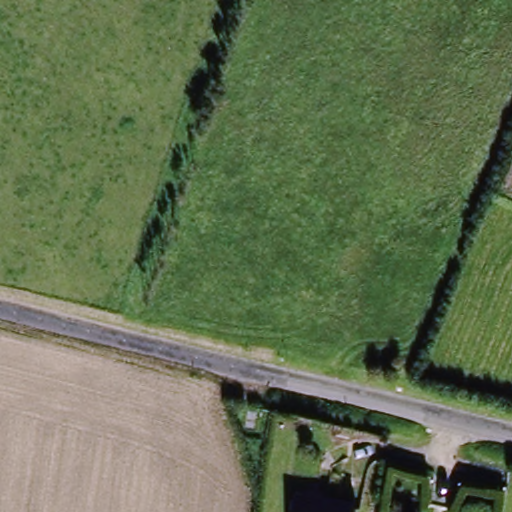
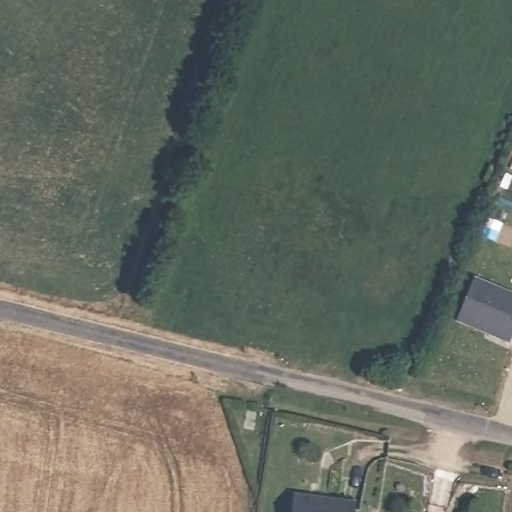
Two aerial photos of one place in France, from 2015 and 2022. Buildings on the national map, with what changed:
new [(458,319),(477,279),(512,295),(512,336),(509,344),(458,319)]
unchanged [(356,505),(355,512),(295,512),(297,497),(356,505)]

